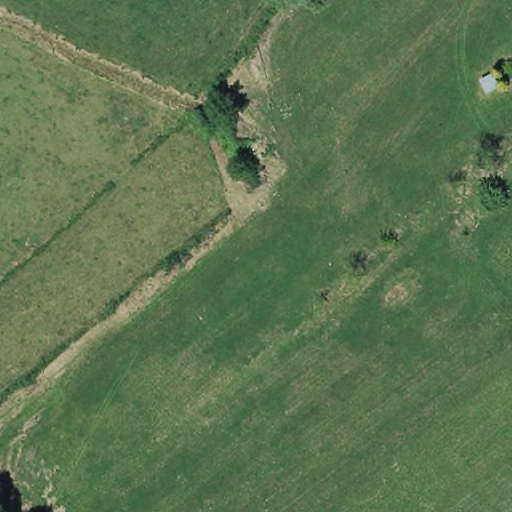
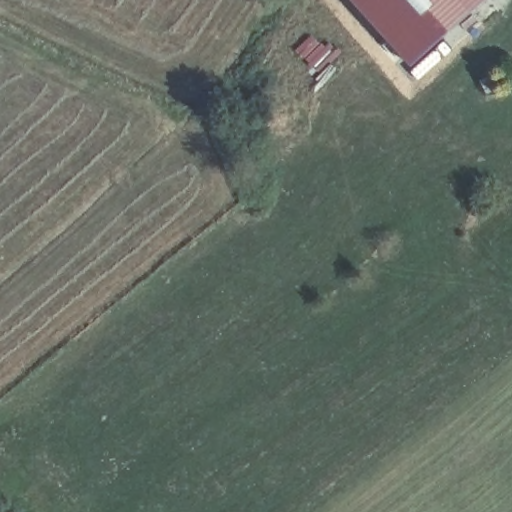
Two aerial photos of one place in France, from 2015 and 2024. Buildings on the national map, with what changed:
new [(407,61),(351,0),(479,0),(407,61)]

